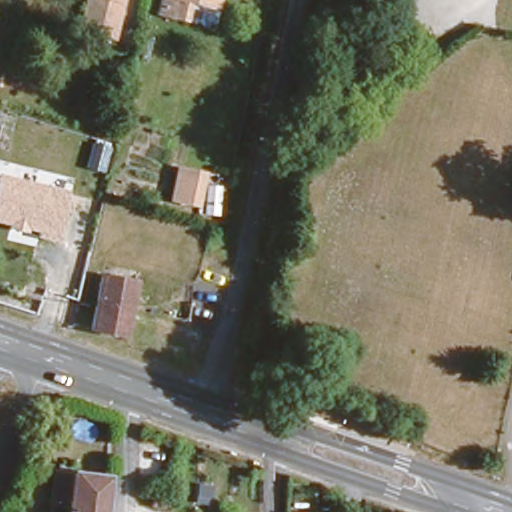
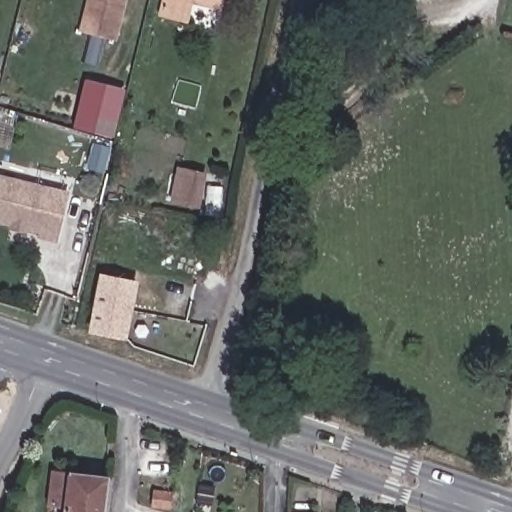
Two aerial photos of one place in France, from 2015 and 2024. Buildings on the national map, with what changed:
unchanged [(73,30),(81,0),(115,0),(106,37),(73,30)]
unchanged [(208,11),(162,0),(210,0),(208,11)]
new [(115,138),(74,128),(86,79),(126,88),(115,138)]
unchanged [(199,210),(166,201),(175,164),(207,172),(199,210)]
unchanged [(35,238),(35,233),(27,231),(26,234),(9,229),(10,226),(0,223),(0,175),(71,194),(58,244),(35,238)]
unchanged [(119,328),(87,322),(97,270),(129,277),(119,328)]
unchanged [(53,488),(58,457),(112,466),(106,512),(67,512),(69,491),(53,488)]
new [(211,487),(209,502),(199,500),(202,485),(211,487)]
unchanged [(197,492),(195,507),(185,506),(188,490),(197,492)]
unchanged [(163,509),(149,507),(151,493),(165,496),(163,509)]

